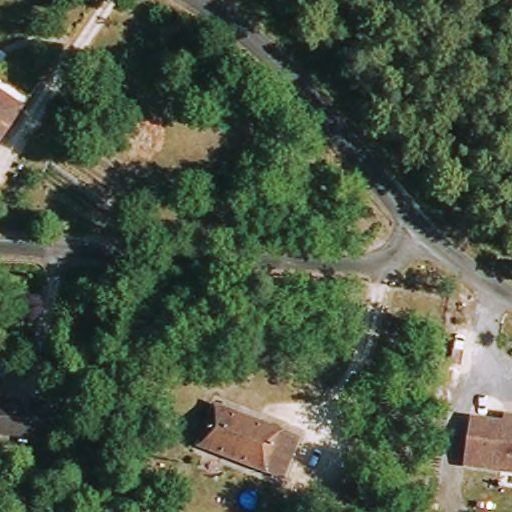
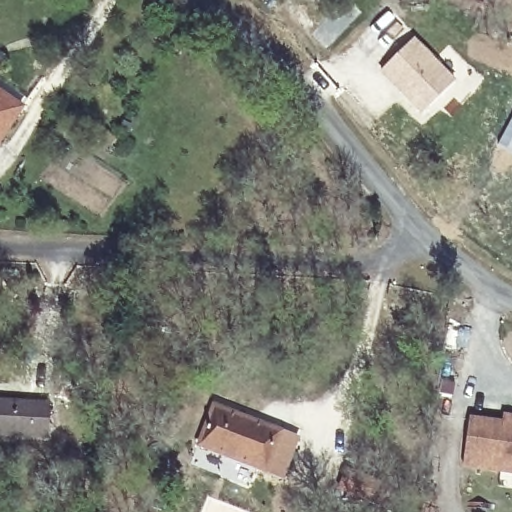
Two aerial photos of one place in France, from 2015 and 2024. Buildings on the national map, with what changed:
new [(380,72),(415,37),(455,81),(418,114),(380,72)]
unchanged [(21,111),(0,147),(0,98),(21,111)]
unchanged [(51,406),(47,440),(0,436),(0,402),(51,406)]
unchanged [(200,450),(215,408),(300,441),(283,481),(200,450)]
unchanged [(473,422),(506,427),(507,419),(512,420),(512,475),(466,468),(473,422)]
unchanged [(345,488),(353,467),(390,482),(382,503),(345,488)]

